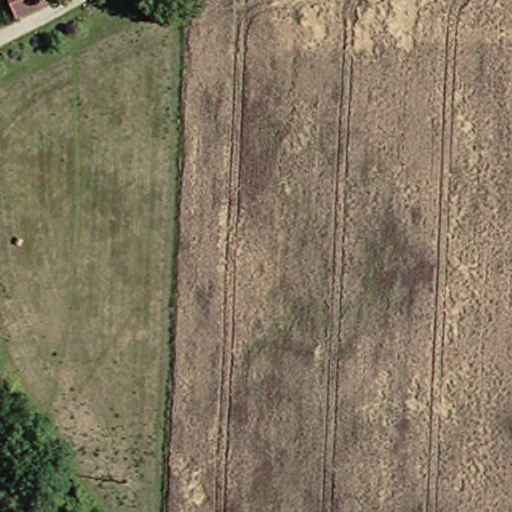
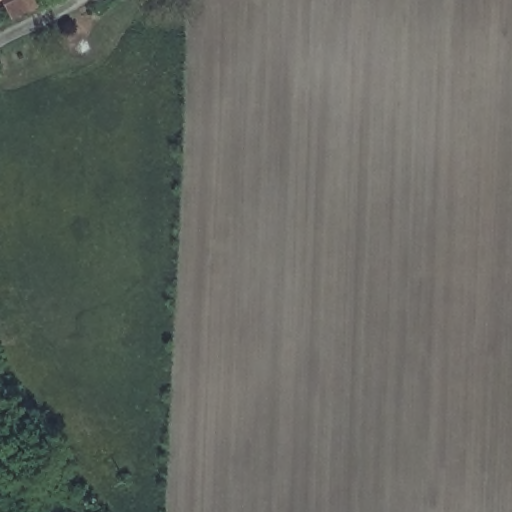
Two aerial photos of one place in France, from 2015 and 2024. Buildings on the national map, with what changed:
unchanged [(15,0),(52,0),(22,15),(15,0)]

